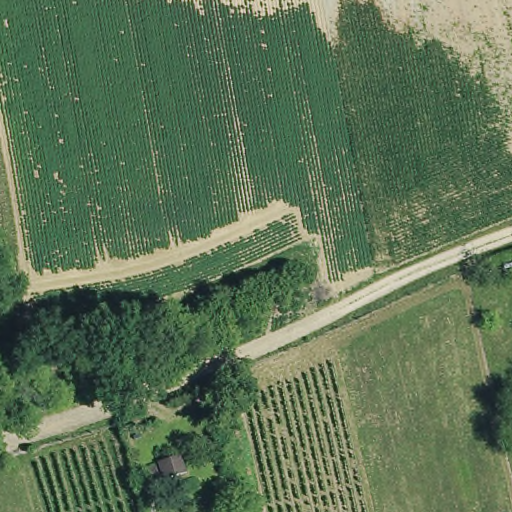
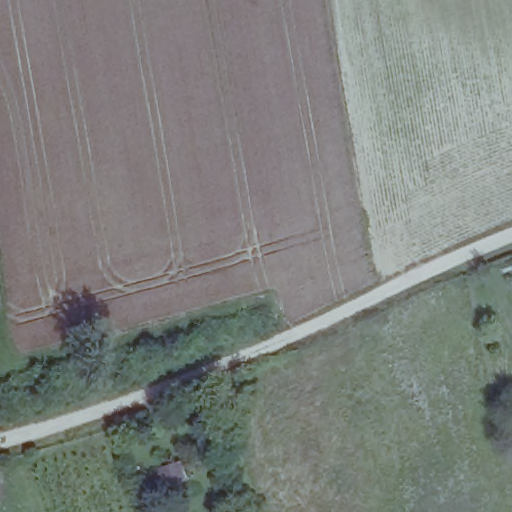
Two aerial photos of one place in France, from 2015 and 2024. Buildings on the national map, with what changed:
unchanged [(185,457),(192,477),(165,484),(160,465),(185,457)]

